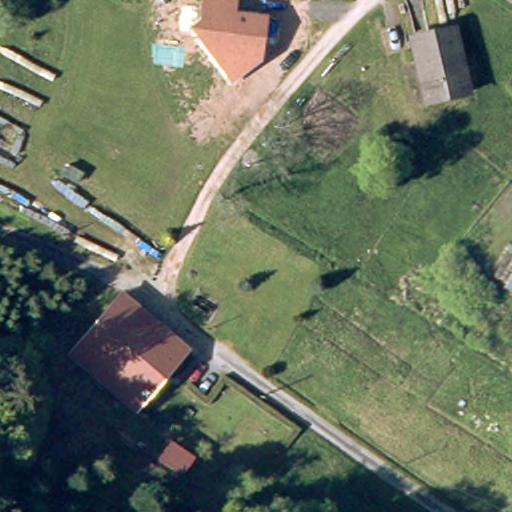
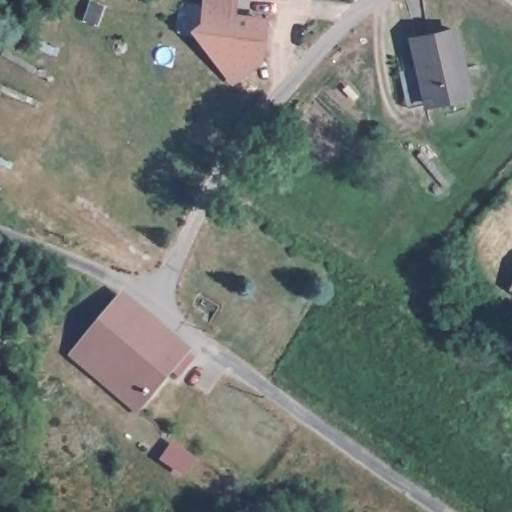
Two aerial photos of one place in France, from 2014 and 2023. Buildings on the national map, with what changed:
unchanged [(267,16),(262,62),(231,84),(190,29),(199,22),(201,0),(236,0),(235,12),(267,16)]
unchanged [(457,36),(472,99),(430,105),(415,40),(457,36)]
unchanged [(180,380),(172,374),(140,411),(75,359),(124,302),(188,356),(185,361),(192,366),(180,380)]
unchanged [(161,425),(165,420),(170,413),(190,427),(184,434),(181,438),(161,425)]

